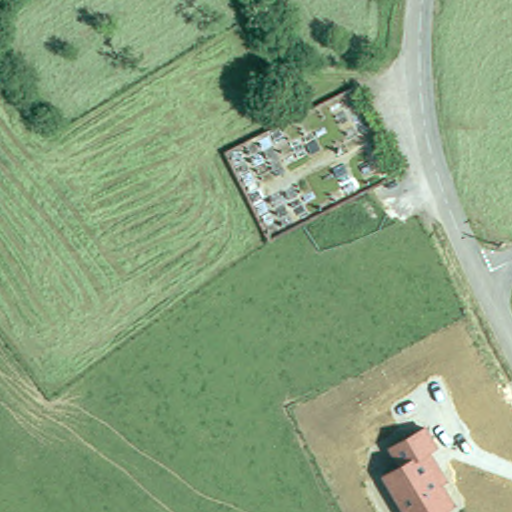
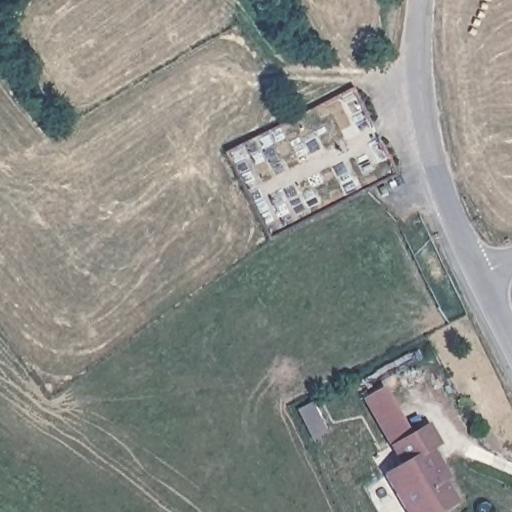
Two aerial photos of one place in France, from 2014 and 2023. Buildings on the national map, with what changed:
new [(383,387),(412,432),(393,445),(364,399),(383,387)]
unchanged [(432,450),(451,480),(446,484),(459,504),(445,512),(404,512),(384,477),(399,467),(387,448),(427,423),(441,445),(432,450)]

